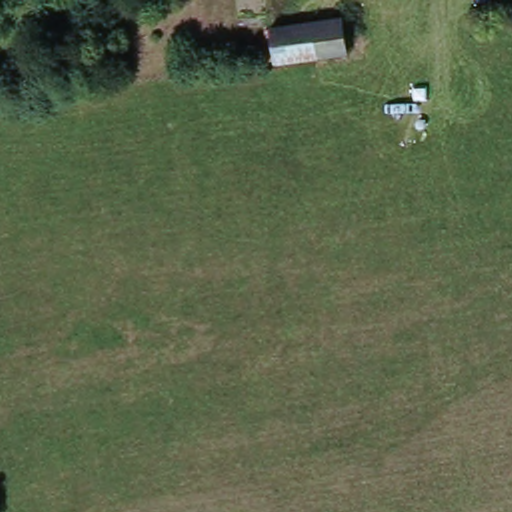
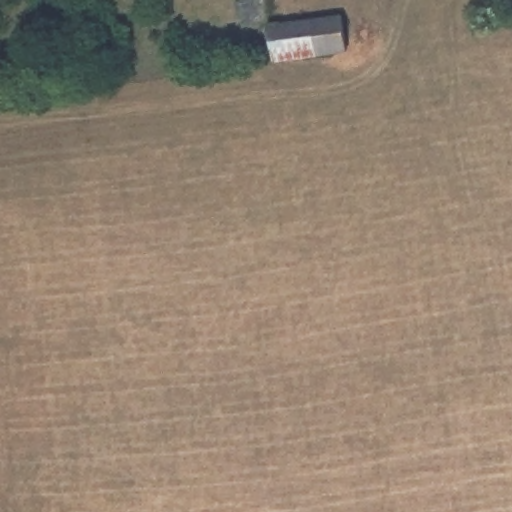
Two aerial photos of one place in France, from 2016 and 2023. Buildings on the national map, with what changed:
unchanged [(275,35),(345,26),(347,42),(350,62),(279,72),(260,75),(256,38),(275,35)]

